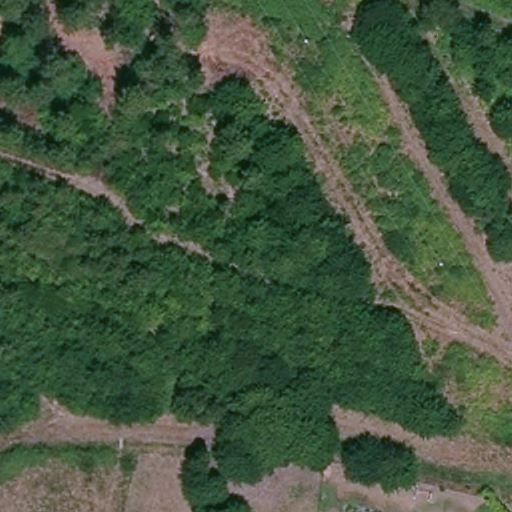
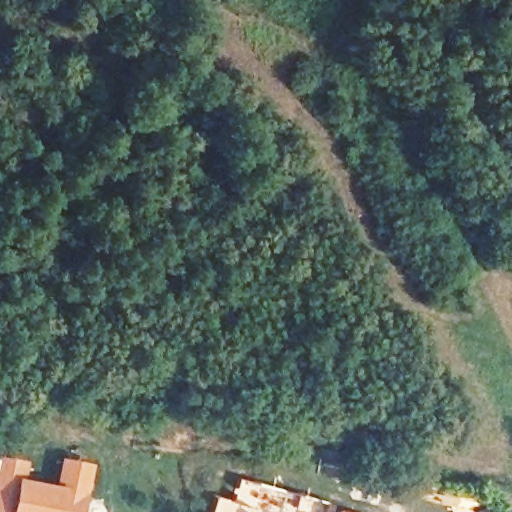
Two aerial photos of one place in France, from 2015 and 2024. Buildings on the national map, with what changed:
new [(24,480),(54,485),(61,458),(94,465),(83,512),(0,512),(0,456),(28,461),(24,480)]

